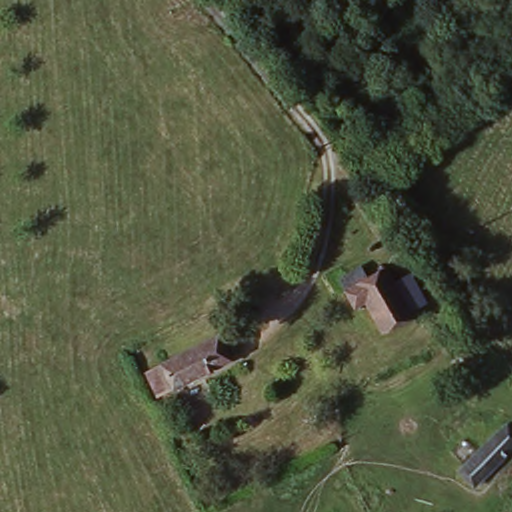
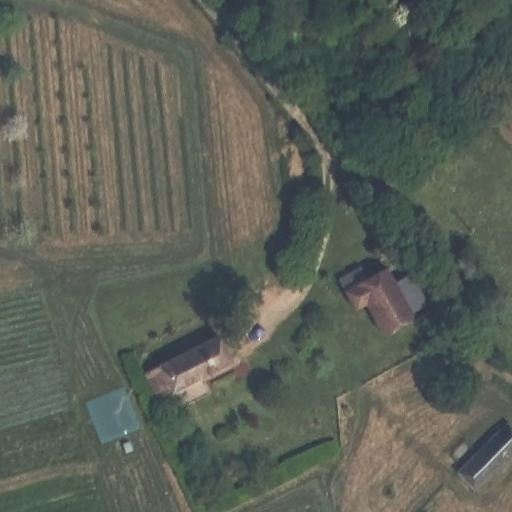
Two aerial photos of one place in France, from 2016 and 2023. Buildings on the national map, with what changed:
unchanged [(368,307),(356,314),(339,286),(364,272),(371,280),(393,267),(403,284),(418,273),(437,303),(420,313),(384,335),(368,307)]
unchanged [(233,365),(158,402),(145,373),(219,336),(233,365)]
unchanged [(512,432),(512,451),(472,491),(456,475),(504,425),(512,432)]

